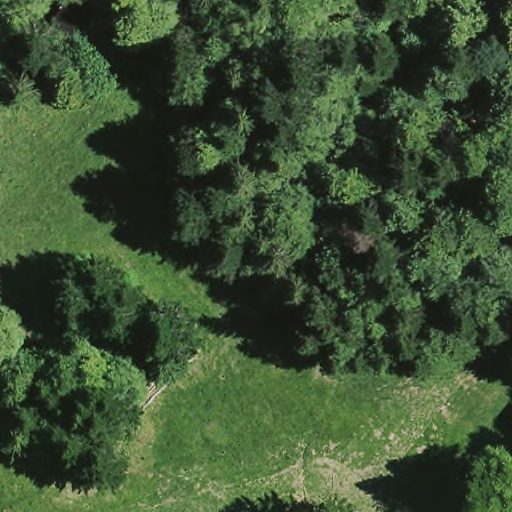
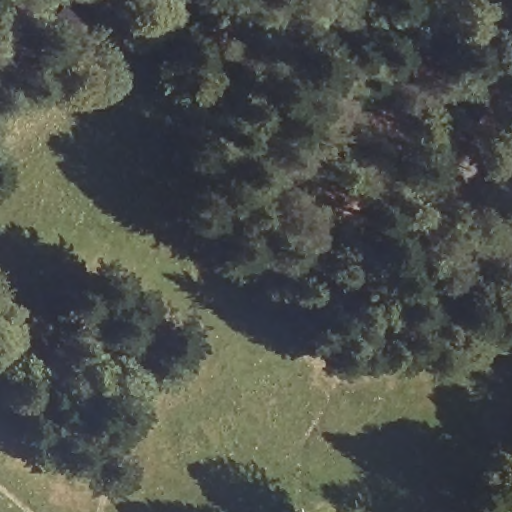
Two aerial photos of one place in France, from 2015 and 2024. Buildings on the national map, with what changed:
unchanged [(58,0),(90,0),(93,3),(70,33),(46,15),(58,0)]

